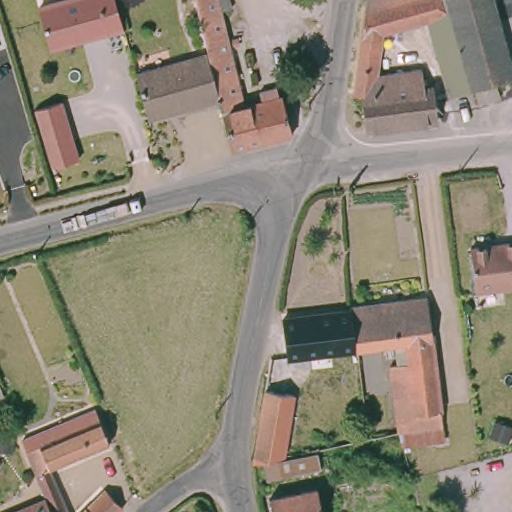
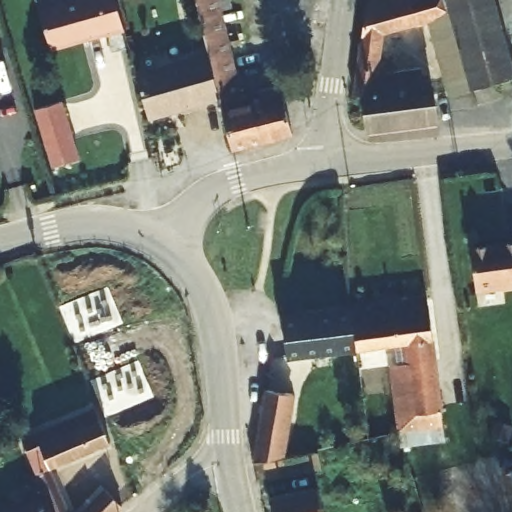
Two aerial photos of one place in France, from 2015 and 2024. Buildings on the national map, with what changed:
unchanged [(100,44),(98,38),(44,54),(34,14),(80,0),(109,0),(120,35),(100,44)]
unchanged [(208,55),(201,27),(197,16),(194,0),(216,0),(228,0),(230,9),(220,11),(222,21),(245,104),(262,99),(260,91),(276,87),(279,96),(283,96),(293,134),(235,150),(220,99),(208,55)]
unchanged [(384,51),(380,76),(422,71),(425,91),(432,90),(438,122),(370,134),(366,106),(363,96),(354,97),(355,95),(370,0),(410,0),(423,0),(494,0),(512,61),(512,80),(452,100),(438,54),(430,25),(382,39),(380,50),(384,51)]
unchanged [(137,76),(208,55),(220,99),(150,119),(137,76)]
unchanged [(80,158),(50,167),(35,110),(64,101),(80,158)]
unchanged [(512,239),(512,278),(473,282),(467,246),(512,239)]
unchanged [(405,448),(400,430),(389,365),(400,363),(396,342),(360,348),(355,312),(355,305),(429,297),(445,420),(446,440),(405,448)]
unchanged [(360,348),(292,357),(287,323),(355,312),(360,348)]
unchanged [(266,372),(296,378),(282,455),(262,460),(251,463),(266,372)]
unchanged [(0,401),(0,389),(5,400),(0,401)]
unchanged [(112,450),(54,474),(69,512),(53,512),(51,507),(27,446),(100,416),(112,450)]
unchanged [(282,455),(315,448),(320,467),(265,480),(262,460),(282,455)]
unchanged [(314,494),(318,512),(270,512),(268,504),(314,494)]
unchanged [(110,495),(123,511),(123,512),(95,512),(110,495)]
unchanged [(51,507),(53,512),(39,512),(51,507)]

